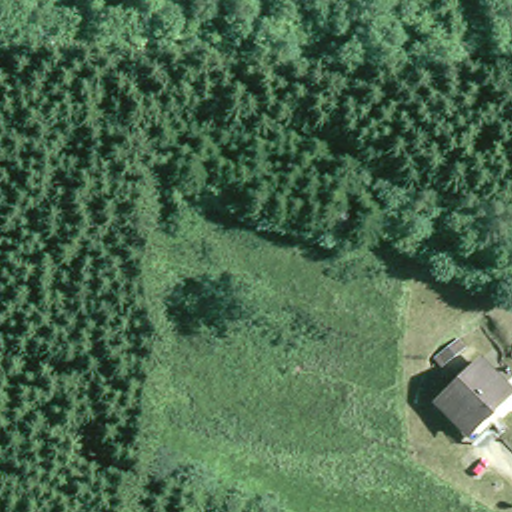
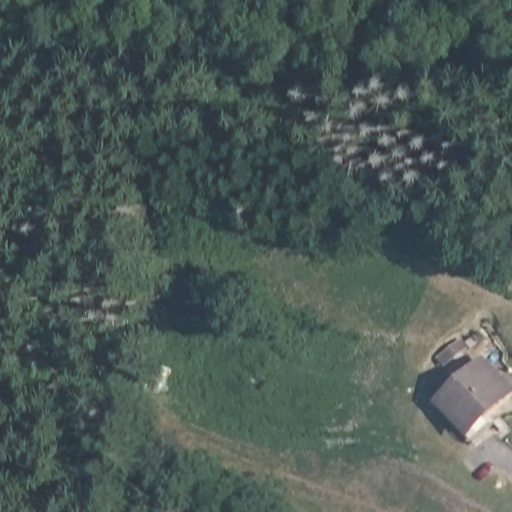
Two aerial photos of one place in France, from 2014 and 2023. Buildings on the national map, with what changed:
unchanged [(467,446),(459,434),(464,430),(439,403),(468,374),(483,359),(509,389),(491,407),(487,409),(500,421),(467,446)]

